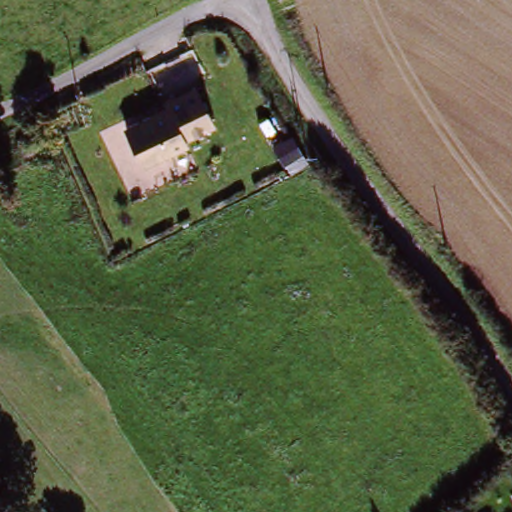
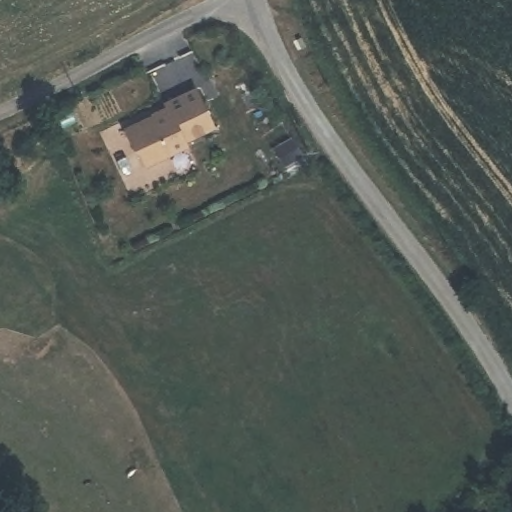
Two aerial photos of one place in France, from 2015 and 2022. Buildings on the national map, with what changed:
unchanged [(169,102),(167,98),(195,82),(216,120),(187,135),(189,140),(150,161),(141,145),(138,146),(127,127),(169,102)]
unchanged [(287,137),(299,154),(283,166),(272,150),(287,137)]

